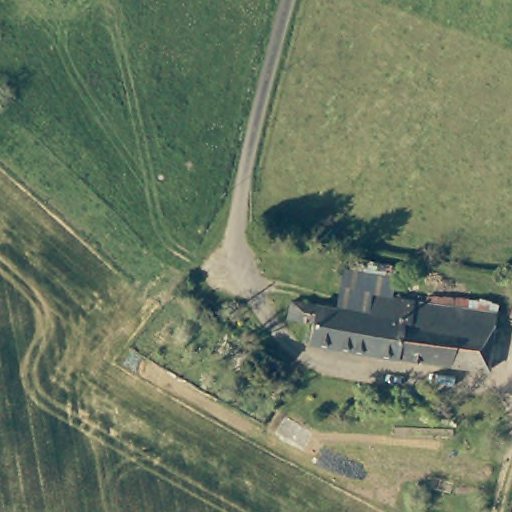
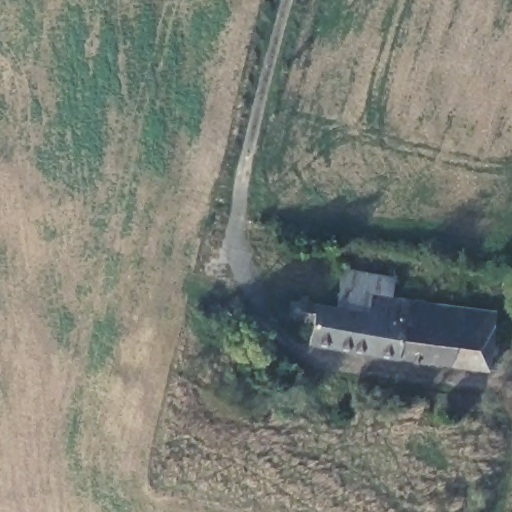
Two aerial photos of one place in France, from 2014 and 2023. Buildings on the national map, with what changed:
unchanged [(344,275),(397,283),(393,302),(374,299),(370,319),(337,313),(344,275)]
unchanged [(337,313),(370,319),(374,299),(393,302),(497,318),(488,375),(311,348),(314,329),(289,324),(291,305),(337,313)]

